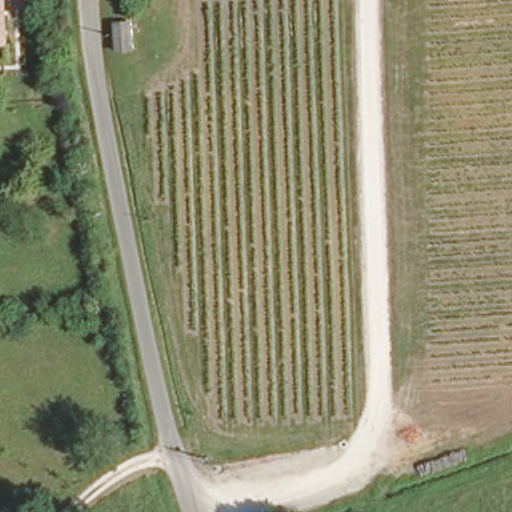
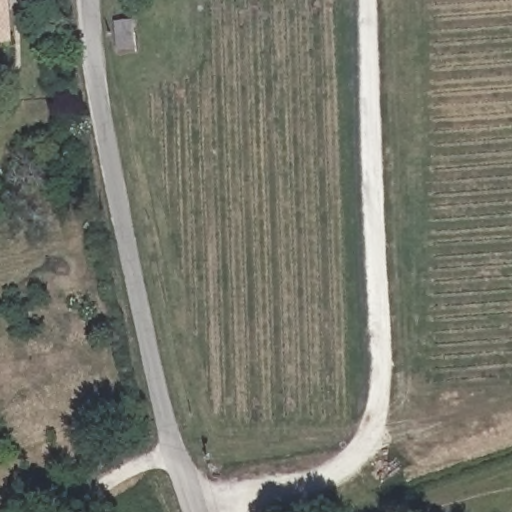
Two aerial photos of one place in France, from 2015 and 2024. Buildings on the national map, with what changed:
unchanged [(1,41),(0,41),(0,0),(3,0),(1,41)]
unchanged [(108,14),(135,12),(136,46),(111,45),(108,14)]

